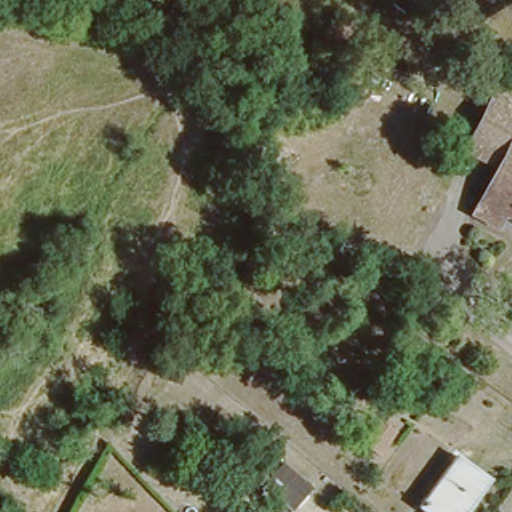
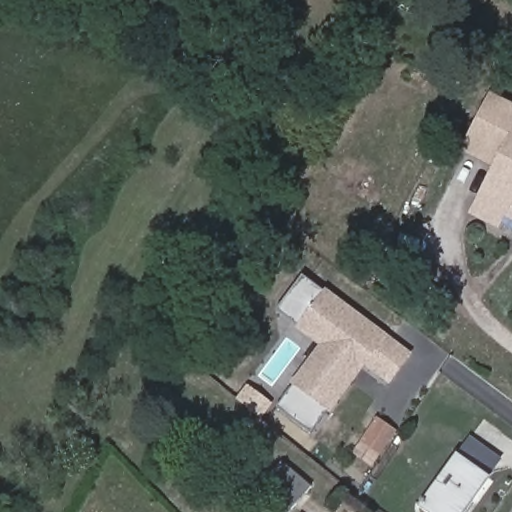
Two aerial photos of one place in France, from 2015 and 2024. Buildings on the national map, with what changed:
unchanged [(500,214),(493,226),(471,213),(510,142),(475,123),(491,94),(512,106),(512,222),(500,214)]
new [(412,355),(393,381),(368,362),(315,435),(279,409),(326,346),(279,310),(305,275),(412,355)]
unchanged [(395,423),(377,445),(360,432),(377,409),(395,423)]
unchanged [(490,477),(471,503),(468,501),(461,512),(424,512),(417,507),(455,453),(490,477)]
unchanged [(308,485),(289,510),(261,488),(280,463),(308,485)]

